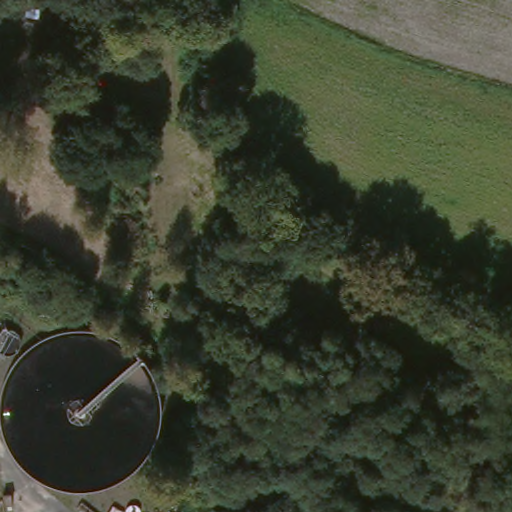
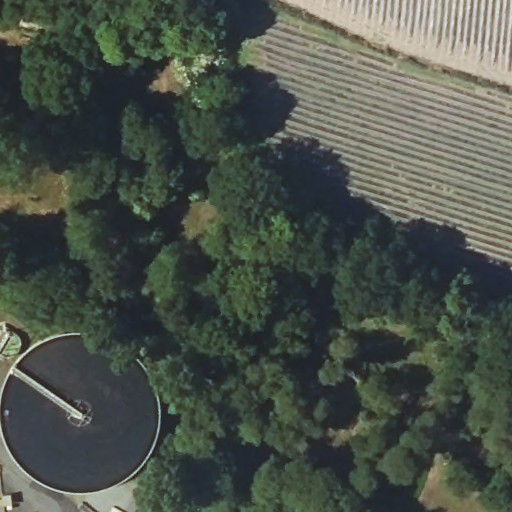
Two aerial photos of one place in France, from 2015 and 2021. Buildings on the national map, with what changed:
[]

